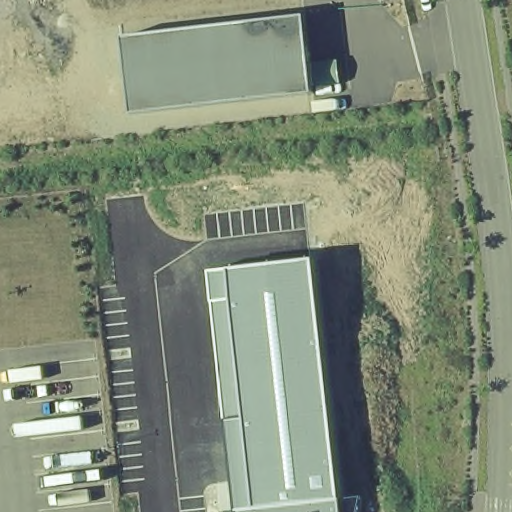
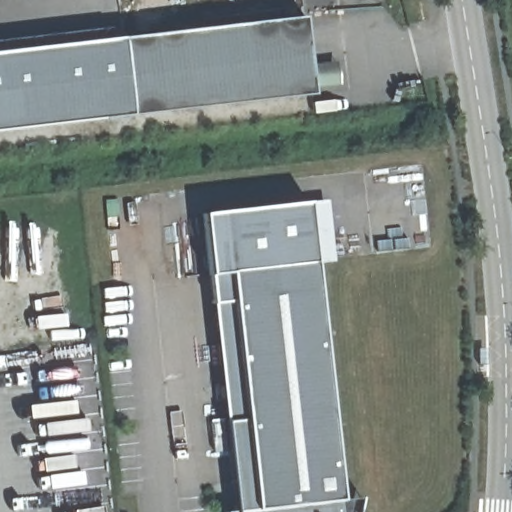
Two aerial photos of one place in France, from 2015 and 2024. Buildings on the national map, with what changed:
unchanged [(316,95),(137,119),(127,36),(308,17),(316,95)]
new [(0,41),(110,29),(112,39),(127,36),(137,119),(0,131),(0,41)]
new [(217,271),(209,212),(317,202),(322,260),(217,271)]
unchanged [(239,268),(322,260),(350,497),(369,496),(366,512),(234,512),(234,511),(245,510),(234,420),(217,271),(239,268)]

